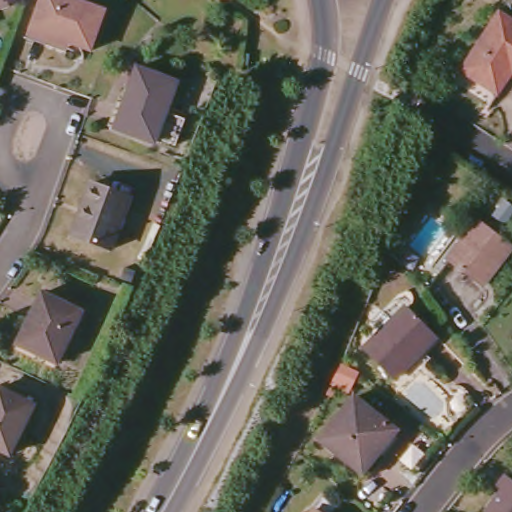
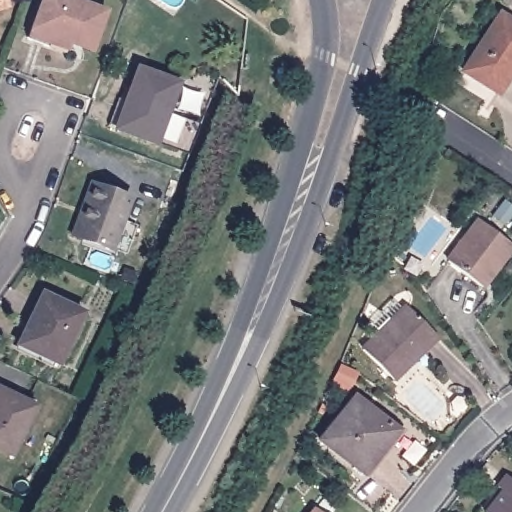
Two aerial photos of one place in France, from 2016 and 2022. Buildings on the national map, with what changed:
unchanged [(0,8),(0,0),(7,0),(9,5),(0,8)]
unchanged [(73,54),(66,51),(65,54),(26,40),(40,0),(74,0),(103,11),(90,51),(80,47),(82,52),(83,56),(83,59),(75,58),(73,54)]
unchanged [(511,72),(497,94),(460,70),(499,12),(512,20),(512,73),(511,72)]
unchanged [(116,129),(137,69),(176,83),(167,107),(186,114),(175,145),(156,138),(154,143),(116,129)]
unchanged [(72,236),(91,184),(130,199),(110,250),(72,236)]
unchanged [(447,262),(478,219),(512,246),(482,286),(447,262)]
unchanged [(18,345),(42,293),(81,313),(57,364),(18,345)]
unchanged [(370,327),(392,305),(402,315),(407,310),(437,341),(393,385),(362,355),(380,337),(370,327)]
unchanged [(352,374),(345,387),(333,380),(340,368),(352,374)]
unchanged [(0,390),(33,406),(10,454),(0,449),(0,390)]
unchanged [(320,441),(355,397),(395,430),(377,453),(379,455),(364,475),(320,441)]
unchanged [(502,492),(497,488),(507,476),(512,480),(512,512),(486,512),(502,492)]
unchanged [(315,510),(318,512),(313,512),(315,510)]

